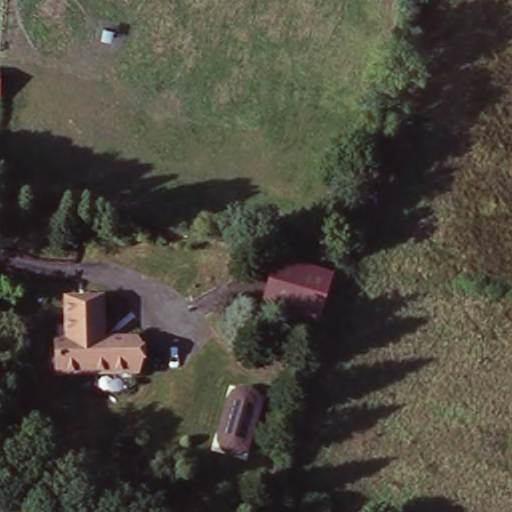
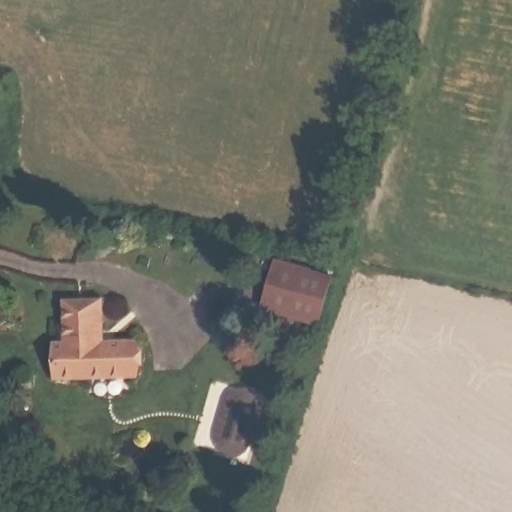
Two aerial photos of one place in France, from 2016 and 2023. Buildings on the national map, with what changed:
unchanged [(257,311),(271,263),(328,280),(314,328),(257,311)]
unchanged [(104,295),(107,340),(142,339),(144,375),(64,379),(60,344),(70,342),(68,298),(104,295)]

